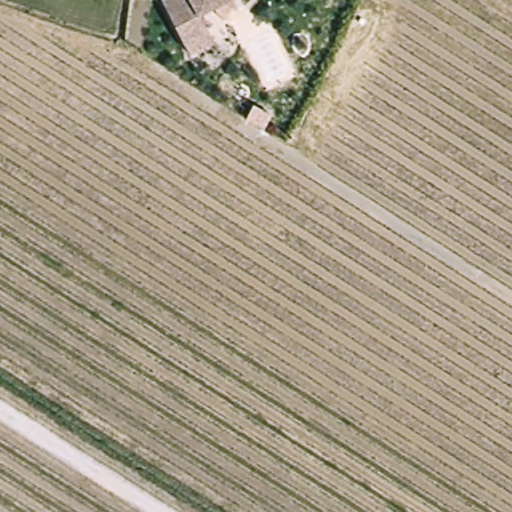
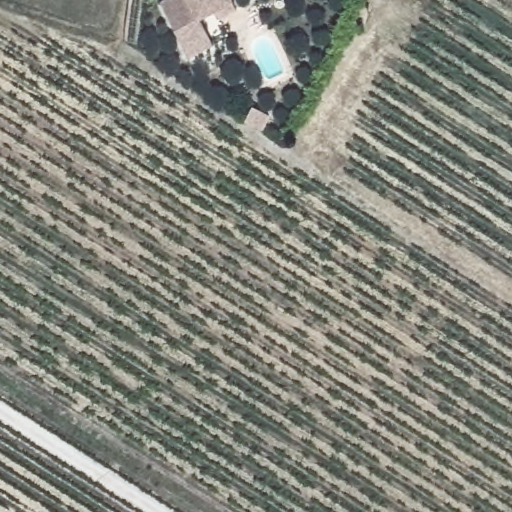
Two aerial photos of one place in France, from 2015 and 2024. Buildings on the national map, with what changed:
unchanged [(176,32),(162,1),(165,0),(190,0),(200,21),(176,32)]
unchanged [(190,0),(208,0),(208,1),(210,0),(231,0),(213,8),(222,27),(182,46),(176,32),(200,21),(190,0)]
unchanged [(208,0),(210,0),(208,1),(208,0)]

